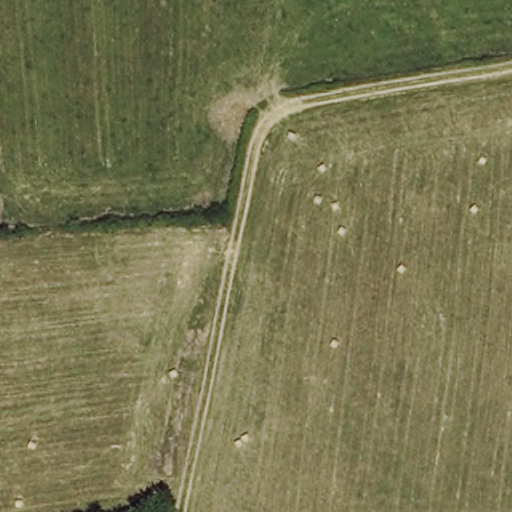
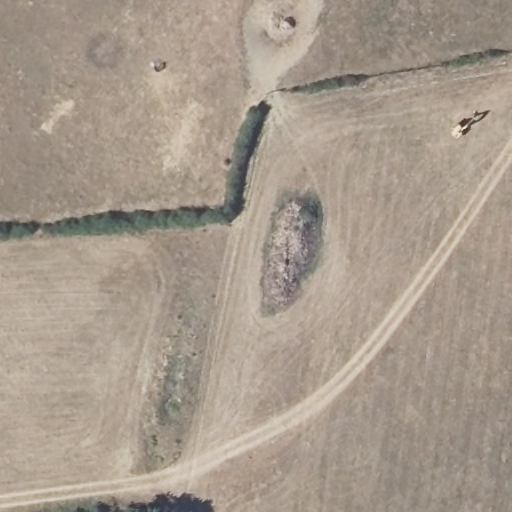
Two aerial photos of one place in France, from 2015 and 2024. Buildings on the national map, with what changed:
[]

